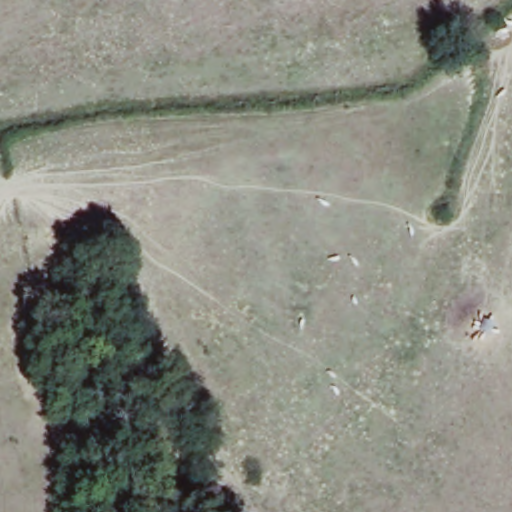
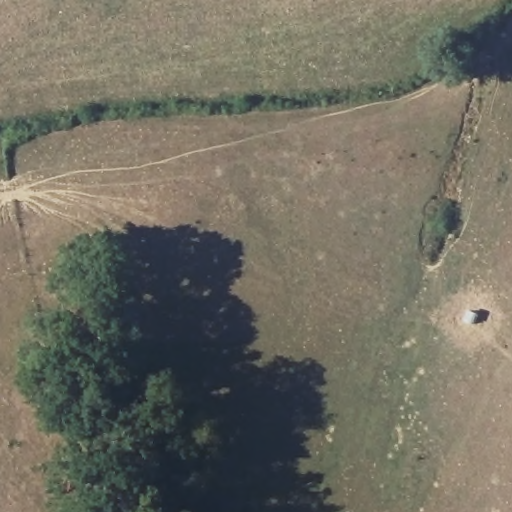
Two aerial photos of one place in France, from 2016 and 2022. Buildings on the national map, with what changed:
unchanged [(195,447),(205,472),(180,482),(170,457),(195,447)]

